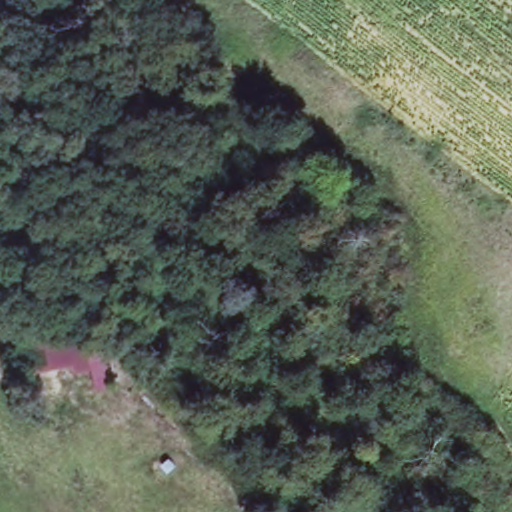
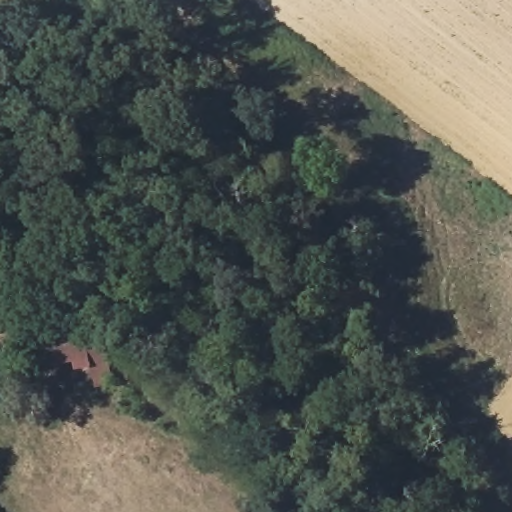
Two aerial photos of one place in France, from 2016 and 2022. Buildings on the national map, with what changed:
unchanged [(96,391),(89,366),(34,376),(24,345),(108,335),(121,386),(96,391)]

